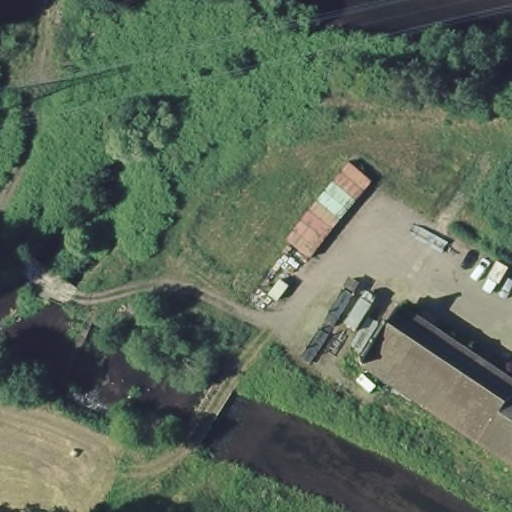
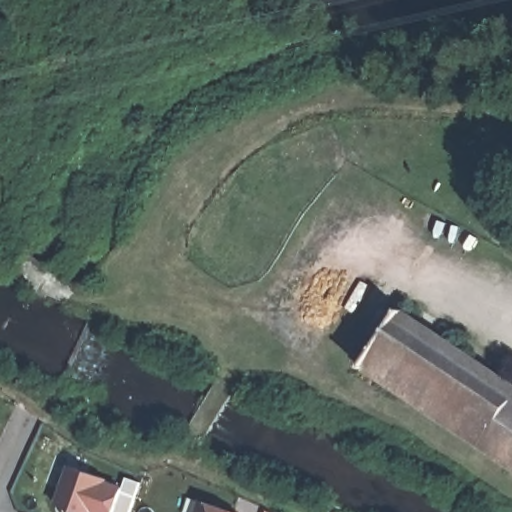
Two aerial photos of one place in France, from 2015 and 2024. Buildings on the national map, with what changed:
unchanged [(496,470),(477,457),(486,443),(396,383),(368,364),(405,307),(447,335),(459,317),(479,330),(467,349),(512,379),(512,460),(506,456),(496,470)]
new [(108,482),(107,485),(123,491),(116,512),(73,512),(58,507),(71,469),(108,482)]
new [(233,512),(199,512),(203,501),(233,512)]

